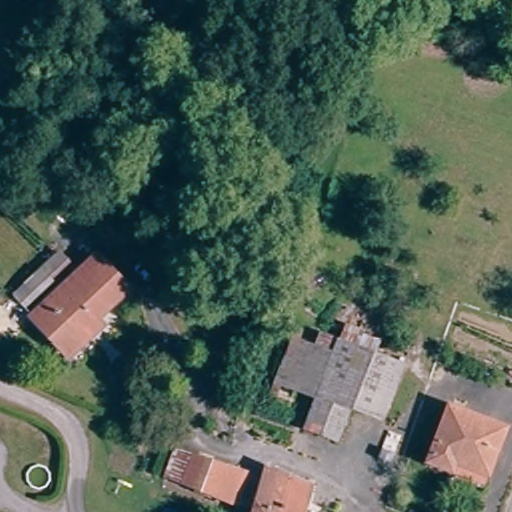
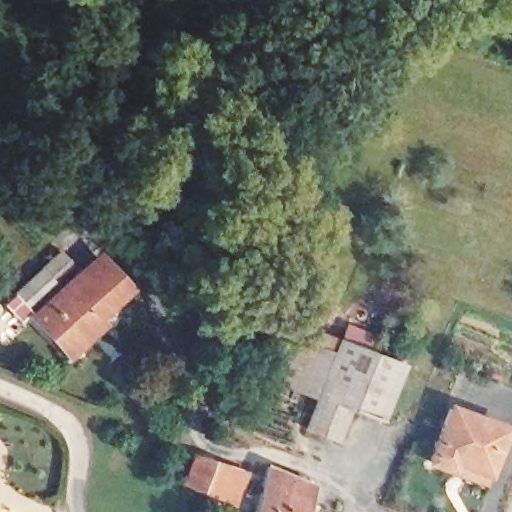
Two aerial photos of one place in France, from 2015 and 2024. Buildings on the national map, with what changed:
unchanged [(59,243),(76,263),(29,310),(11,292),(59,243)]
unchanged [(85,329),(66,346),(29,310),(76,263),(95,244),(126,276),(131,282),(85,329)]
unchanged [(295,331),(331,348),(312,393),(277,378),(295,331)]
unchanged [(385,408),(380,418),(348,405),(334,436),(300,422),(312,393),(331,348),(338,332),(405,363),(385,408)]
unchanged [(456,410),(505,430),(486,475),(450,460),(447,467),(435,462),(456,410)]
unchanged [(244,505),(162,474),(171,447),(230,469),(252,478),(244,505)]
unchanged [(290,476),(311,486),(303,512),(253,512),(268,466),(290,476)]

